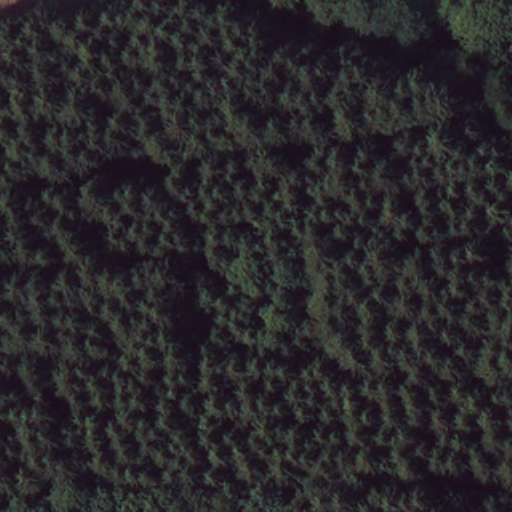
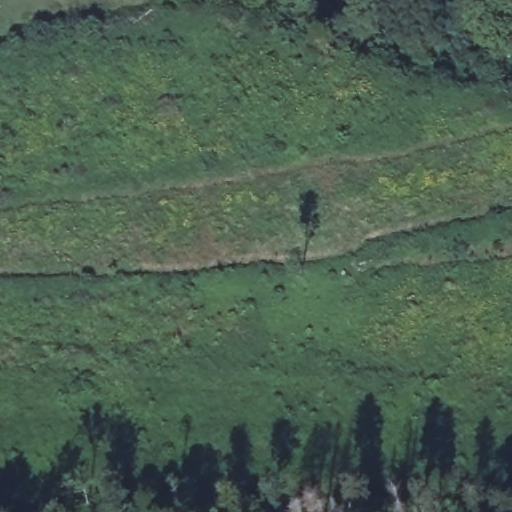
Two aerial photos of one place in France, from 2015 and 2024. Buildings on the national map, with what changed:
[]

